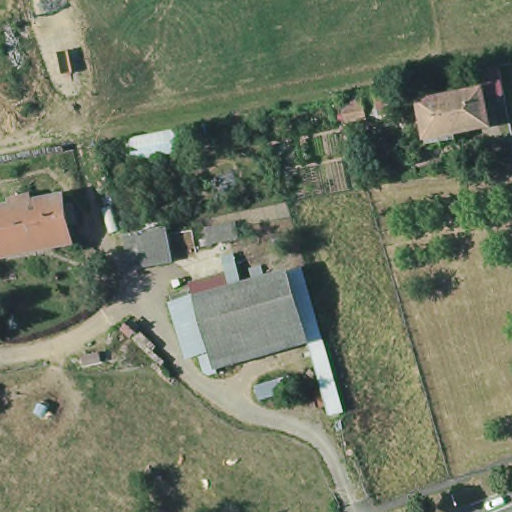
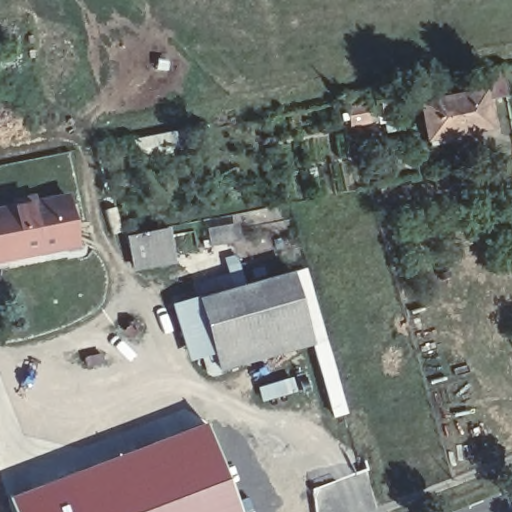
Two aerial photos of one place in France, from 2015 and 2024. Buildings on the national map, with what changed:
unchanged [(399,88),(404,113),(383,117),(378,92),(399,88)]
unchanged [(439,145),(437,139),(434,140),(427,103),(489,90),(497,127),(463,134),(465,141),(439,145)]
unchanged [(367,103),(371,122),(351,126),(347,107),(367,103)]
unchanged [(211,126),(217,152),(133,166),(128,141),(211,126)]
unchanged [(77,245),(42,252),(40,246),(2,254),(0,241),(0,210),(65,196),(77,245)]
unchanged [(167,232),(172,260),(160,262),(132,268),(122,241),(150,235),(167,232)]
unchanged [(348,415),(333,418),(310,353),(217,376),(212,362),(188,365),(172,302),(186,297),(183,285),(249,270),(250,282),(294,275),(310,270),(348,415)]
new [(293,375),(299,391),(261,402),(256,386),(293,375)]
new [(238,512),(10,512),(5,496),(203,421),(238,512)]

